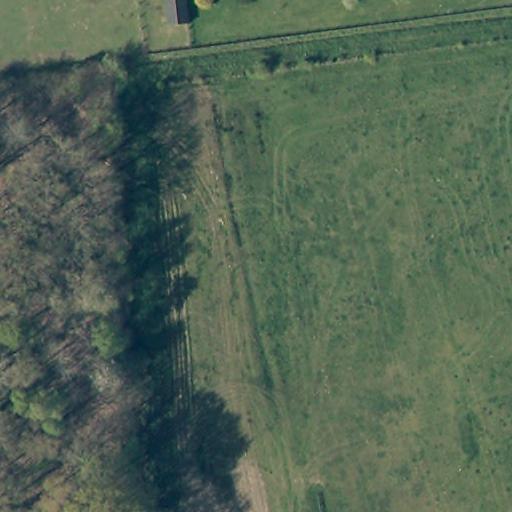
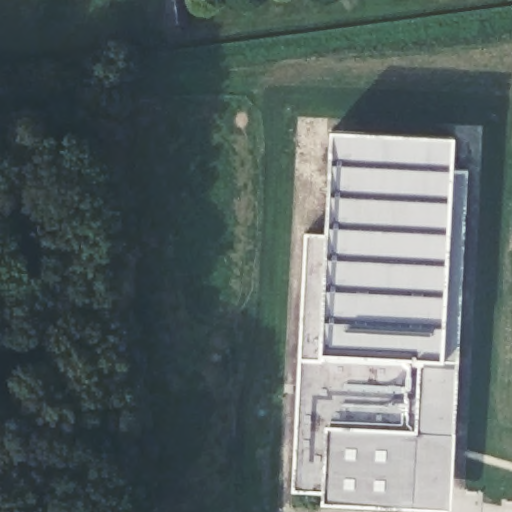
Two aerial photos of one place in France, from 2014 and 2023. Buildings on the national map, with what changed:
unchanged [(163,0),(188,0),(190,26),(163,27),(163,0)]
new [(321,492),(295,491),(305,234),(324,236),(330,130),(452,136),(451,169),(466,168),(450,509),(322,505),(321,492)]

